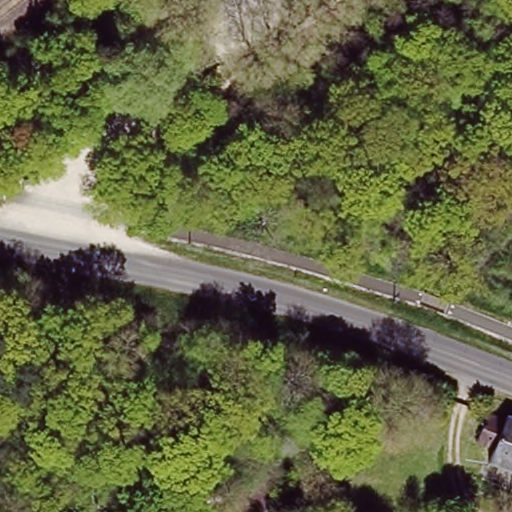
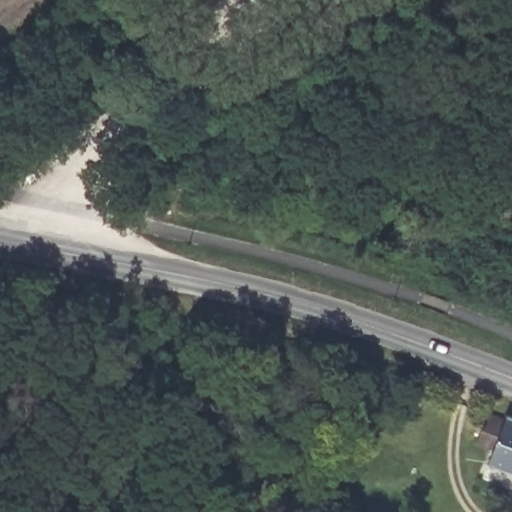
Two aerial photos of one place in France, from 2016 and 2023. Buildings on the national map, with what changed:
unchanged [(486,448),(470,440),(475,426),(470,423),(475,412),(502,422),(506,414),(512,416),(512,474),(482,463),(486,448)]

